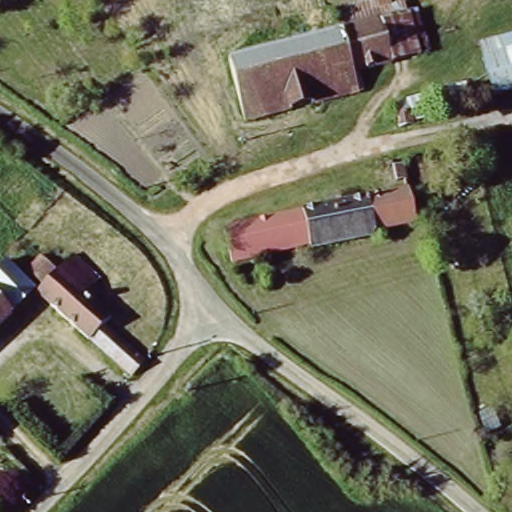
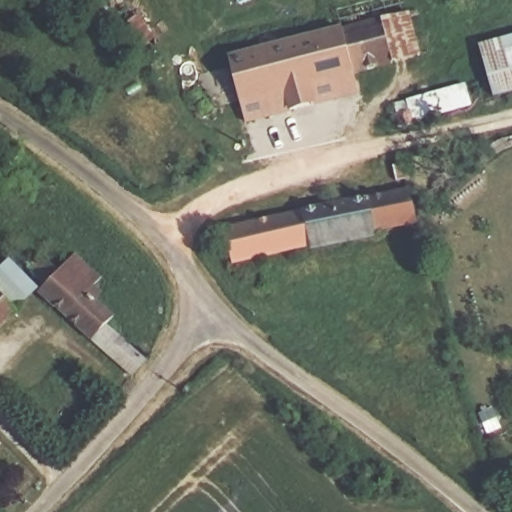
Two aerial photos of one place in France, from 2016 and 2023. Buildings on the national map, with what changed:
unchanged [(374,17),(402,8),(415,50),(386,59),(374,17)]
unchanged [(320,100),(243,123),(225,62),(335,28),(374,17),(386,59),(349,70),(355,90),(320,100)]
unchanged [(512,37),(512,96),(502,98),(487,44),(512,37)]
unchanged [(395,96),(407,93),(412,118),(400,121),(395,96)]
unchanged [(404,163),(407,178),(396,180),(393,165),(404,163)]
unchanged [(302,244),(229,261),(222,228),(398,188),(405,220),(370,229),(371,235),(303,251),(302,244)]
unchanged [(39,286),(26,274),(29,271),(26,268),(37,257),(55,273),(69,257),(96,282),(84,295),(107,317),(98,327),(137,364),(125,376),(34,292),(39,286)]
unchanged [(0,262),(30,289),(7,314),(0,308),(0,262)]
unchanged [(0,323),(0,308),(7,314),(0,323)]

